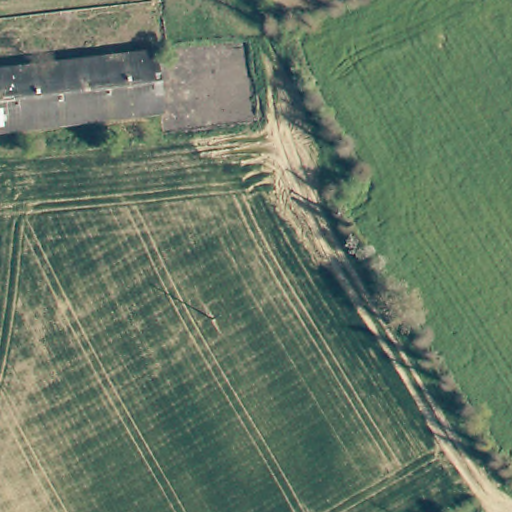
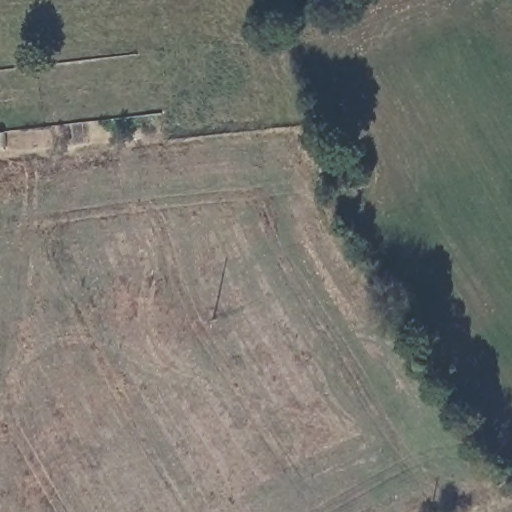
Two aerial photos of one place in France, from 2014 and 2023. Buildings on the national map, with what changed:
demolished [(105,119),(95,61),(95,56),(156,51),(166,116),(105,119)]
demolished [(95,56),(95,61),(105,119),(88,121),(0,134),(0,72),(95,56)]

